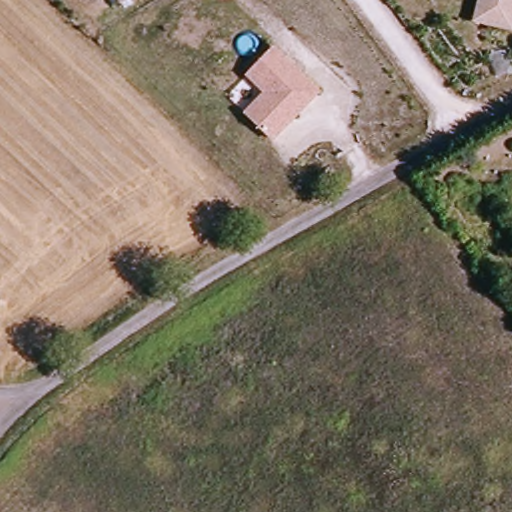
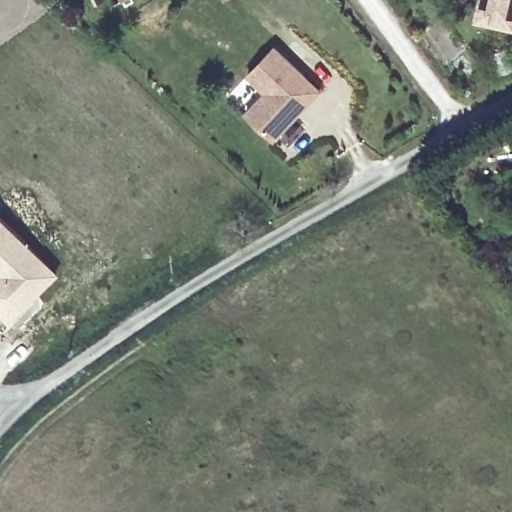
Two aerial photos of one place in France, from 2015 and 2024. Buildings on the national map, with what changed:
unchanged [(512,23),(510,30),(472,21),(478,0),(512,0),(512,23)]
unchanged [(249,76),(277,48),(322,93),(275,142),(246,112),(263,94),(249,76)]
new [(59,272),(44,287),(40,284),(28,295),(31,299),(12,319),(0,307),(0,214),(59,272)]

